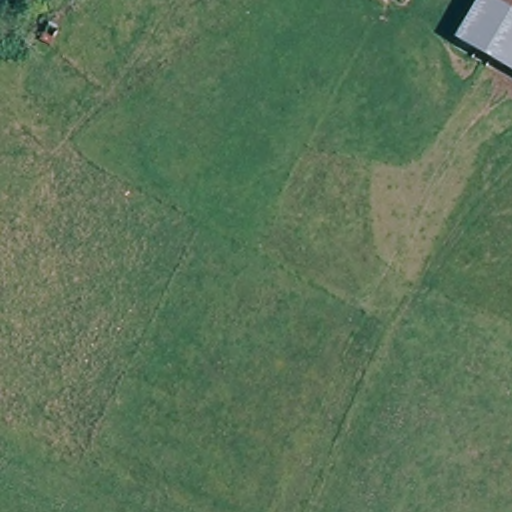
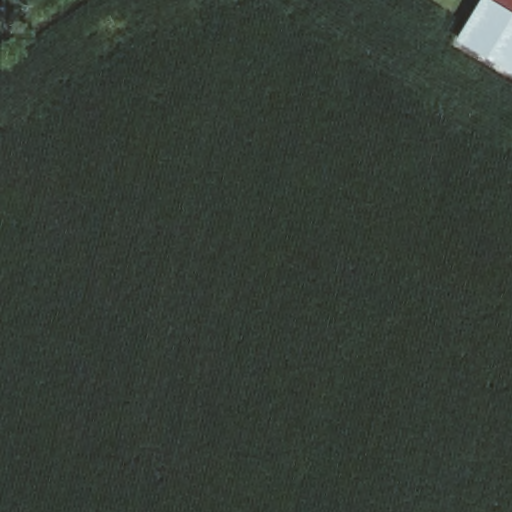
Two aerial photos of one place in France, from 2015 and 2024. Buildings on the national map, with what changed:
unchanged [(462,34),(482,1),(483,0),(500,0),(512,7),(512,65),(462,34)]
unchanged [(500,0),(512,0),(512,7),(500,0)]

